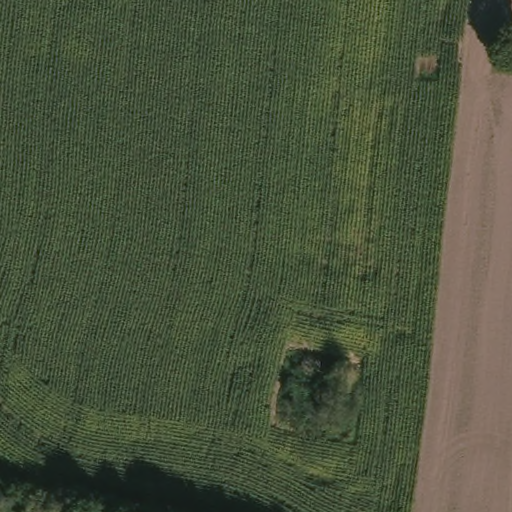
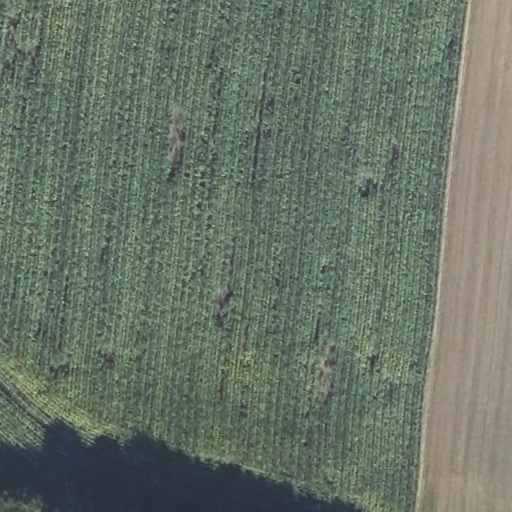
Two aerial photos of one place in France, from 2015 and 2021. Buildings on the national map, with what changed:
[]

